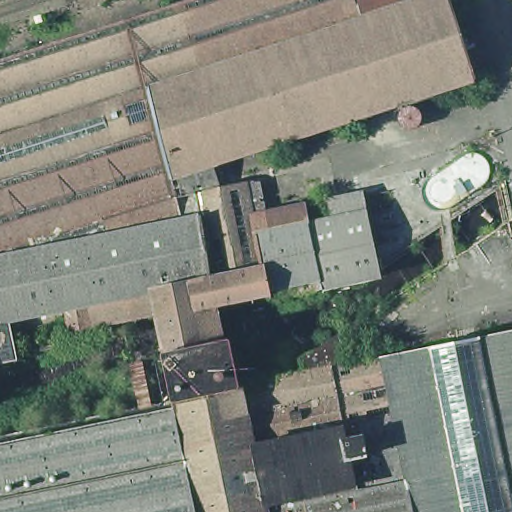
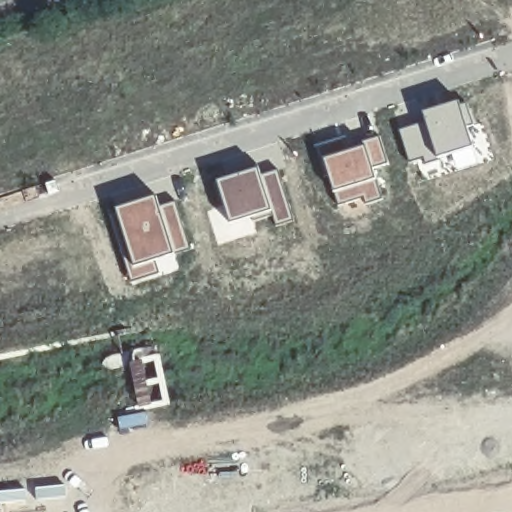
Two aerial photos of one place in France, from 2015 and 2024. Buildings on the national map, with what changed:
demolished [(151,82),(126,90),(139,132),(0,177),(0,57),(179,0),(183,0),(202,66),(151,82)]
demolished [(405,0),(455,0),(480,73),(216,158),(175,172),(151,82),(202,66),(364,13),(405,0)]
demolished [(364,13),(202,66),(183,0),(360,0),(364,13)]
demolished [(364,13),(360,0),(405,0),(364,13)]
demolished [(126,90),(151,82),(175,172),(180,193),(186,214),(0,252),(0,177),(139,132),(126,90)]
new [(461,106),(470,103),(477,126),(466,130),(472,148),(426,164),(423,158),(410,163),(400,129),(425,122),(422,110),(458,100),(461,106)]
new [(387,163),(372,167),(383,202),(369,205),(366,194),(339,202),(324,157),(366,146),(364,141),(380,137),(387,163)]
demolished [(224,183),(180,193),(175,172),(216,158),(224,183)]
demolished [(475,160),(480,164),(482,169),(481,175),(477,181),(472,183),(465,182),(460,177),(458,172),(459,166),(462,161),(468,159),(475,160)]
new [(260,167),(262,177),(279,171),(294,221),(277,226),(272,210),(232,223),(219,181),(260,167)]
demolished [(317,286),(317,277),(274,286),(275,289),(222,300),(217,274),(206,210),(186,214),(180,193),(224,183),(250,176),(257,211),(311,200),(313,218),(322,216),(319,199),(367,189),(374,221),(384,269),(384,272),(376,273),(317,286)]
new [(160,209),(176,204),(189,246),(154,258),(159,274),(131,281),(110,212),(157,196),(160,209)]
demolished [(11,316),(0,318),(0,252),(186,214),(206,210),(217,274),(159,286),(163,309),(97,322),(99,332),(74,336),(69,304),(11,316)]
demolished [(163,309),(159,286),(217,274),(222,300),(219,302),(227,336),(171,347),(163,309)]
demolished [(418,512),(398,411),(386,352),(512,326),(512,512),(418,512)]
demolished [(305,357),(342,330),(349,360),(386,352),(398,411),(418,512),(201,512),(179,406),(177,396),(244,382),(281,374),(307,369),(305,357)]
demolished [(171,348),(171,347),(227,336),(233,335),(244,382),(177,396),(167,349),(171,348)]
new [(146,361),(154,405),(138,408),(129,364),(146,361)]
demolished [(185,512),(181,490),(164,409),(179,406),(201,512),(185,512)]
demolished [(185,512),(0,512),(0,443),(35,435),(35,433),(38,432),(39,434),(75,427),(75,425),(79,424),(79,426),(117,418),(116,416),(121,415),(121,417),(164,409),(181,490),(185,512)]

